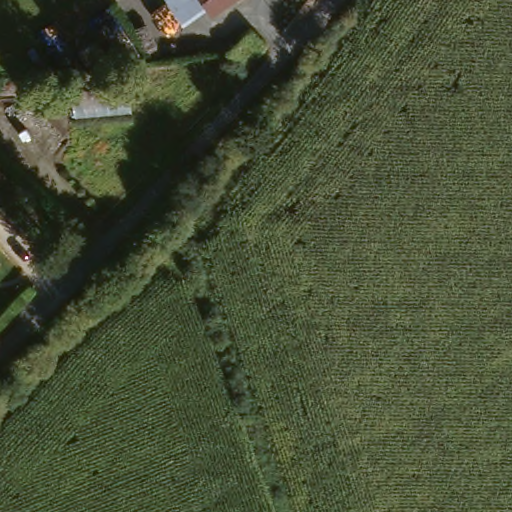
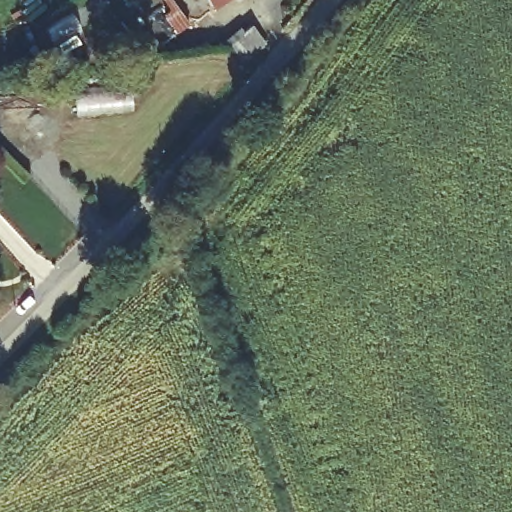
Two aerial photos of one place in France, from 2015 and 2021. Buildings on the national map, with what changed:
unchanged [(235,0),(216,13),(207,1),(182,20),(170,0),(235,0)]
unchanged [(247,33),(259,45),(239,63),(232,62),(225,50),(247,33)]

